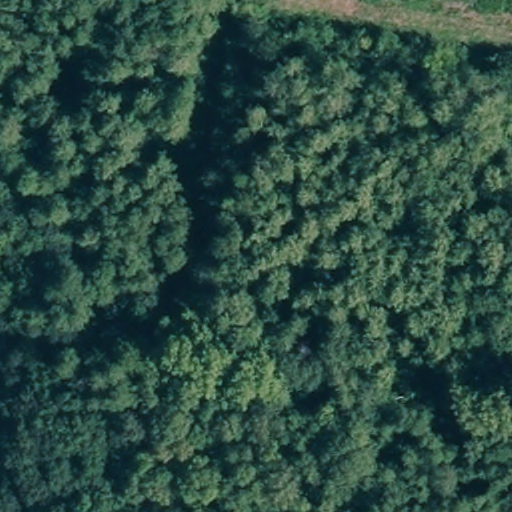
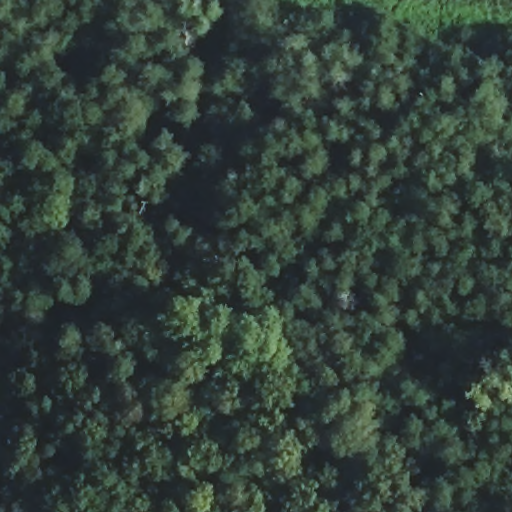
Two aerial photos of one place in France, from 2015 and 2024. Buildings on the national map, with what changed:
[]

